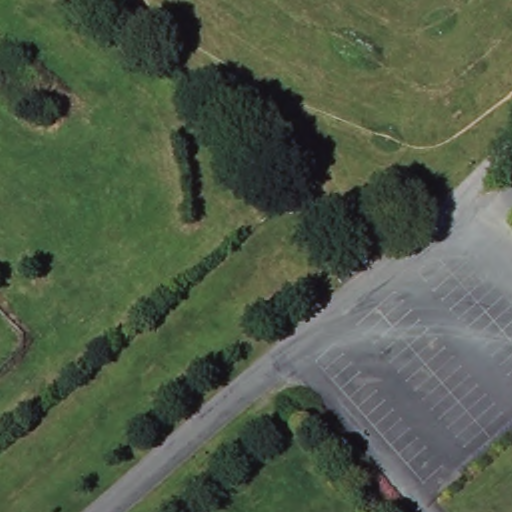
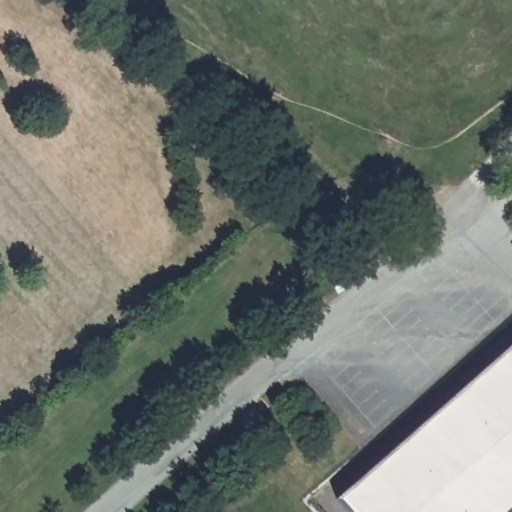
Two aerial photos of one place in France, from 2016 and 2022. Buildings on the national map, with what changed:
new [(512,344),(512,512),(354,512),(339,496),(512,344)]

